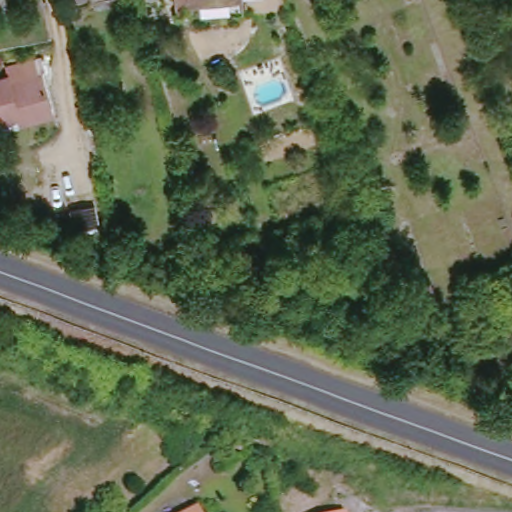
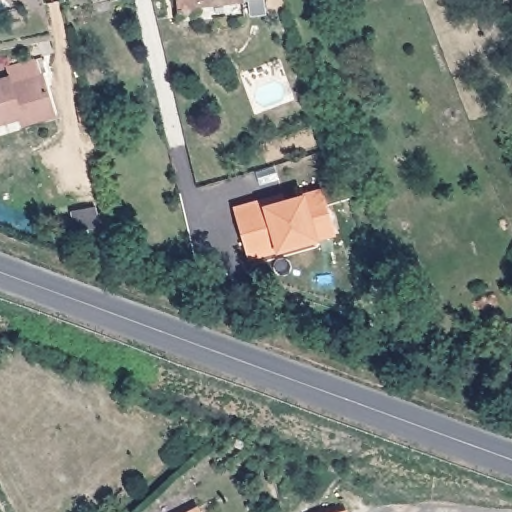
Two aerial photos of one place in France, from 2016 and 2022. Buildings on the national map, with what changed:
new [(197,8),(196,3),(178,6),(177,0),(244,0),(245,1),(197,8)]
unchanged [(33,72),(45,111),(17,119),(15,112),(0,116),(0,75),(5,73),(6,79),(33,72)]
new [(315,240),(251,256),(237,209),(266,200),(285,195),(287,200),(322,190),(330,217),(335,233),(315,240)]
unchanged [(197,512),(183,512),(194,506),(197,512)]
unchanged [(347,508),(347,512),(332,512),(347,508)]

